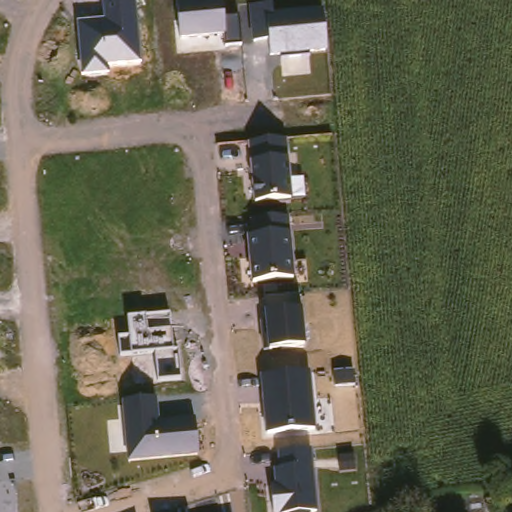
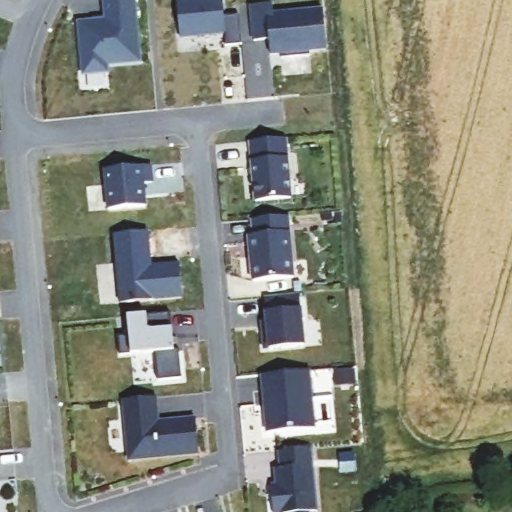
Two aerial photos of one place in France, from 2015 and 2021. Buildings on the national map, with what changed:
unchanged [(110,73),(82,75),(77,21),(105,19),(103,0),(136,0),(140,63),(110,65),(110,73)]
unchanged [(180,37),(176,0),(223,0),(225,17),(240,15),(242,45),(226,45),(225,34),(180,37)]
unchanged [(268,37),(254,40),(250,5),(272,1),(273,12),(322,8),(326,50),(270,55),(268,37)]
unchanged [(251,141),(286,139),(291,179),(305,178),(307,199),(255,200),(251,141)]
new [(151,165),(152,182),(143,183),(145,206),(109,209),(106,169),(151,165)]
unchanged [(249,234),(252,234),(251,219),(290,216),(295,278),(252,280),(249,234)]
new [(148,231),(151,256),(148,256),(149,265),(179,262),(182,297),(120,302),(114,234),(148,231)]
unchanged [(265,298),(300,295),(305,347),(270,350),(265,298)]
unchanged [(155,354),(119,356),(118,337),(130,336),(128,315),(170,312),(174,350),(179,350),(181,379),(159,380),(155,354)]
unchanged [(261,375),(310,370),(316,429),(267,432),(261,375)]
unchanged [(124,400),(158,397),(160,420),(196,418),(199,457),(130,461),(124,400)]
unchanged [(311,511),(311,512),(273,512),(270,485),(275,485),(273,468),(278,467),(277,451),(312,449),(317,511),(311,511)]

